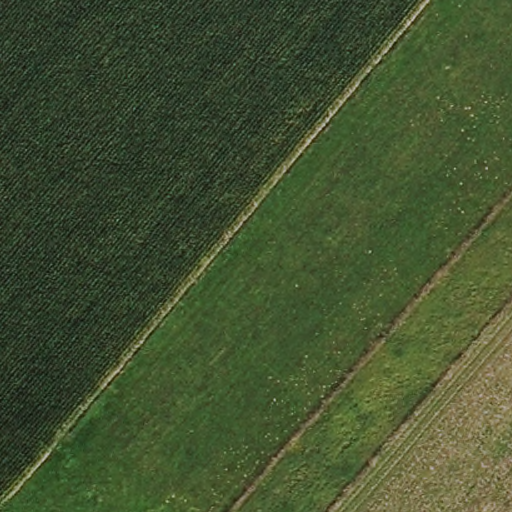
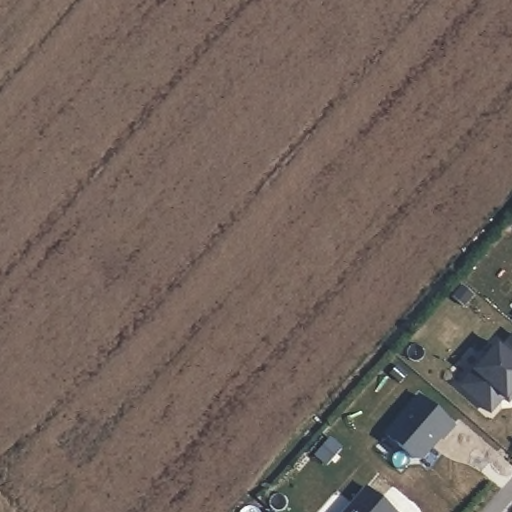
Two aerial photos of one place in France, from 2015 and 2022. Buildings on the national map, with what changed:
new [(504,398),(491,413),(461,386),(498,345),(502,349),(512,337),(512,399),(509,402),(506,399),(504,398)]
new [(420,396),(455,426),(443,439),(441,437),(422,459),(415,459),(386,435),(420,396)]
new [(396,512),(346,512),(367,487),(396,512)]

